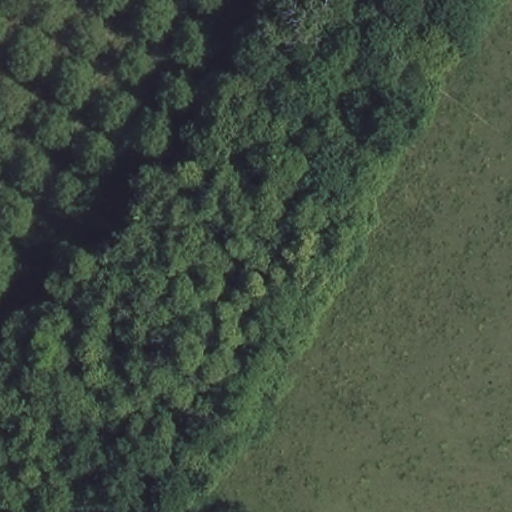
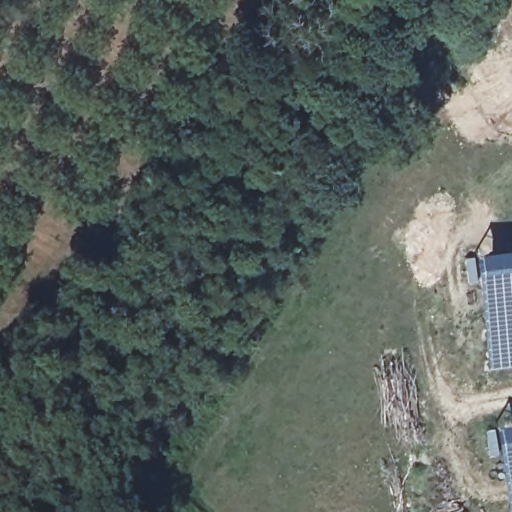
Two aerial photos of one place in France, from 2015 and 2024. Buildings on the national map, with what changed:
new [(487,366),(474,249),(512,245),(512,364),(487,366)]
new [(495,423),(512,420),(512,512),(509,512),(495,423)]

